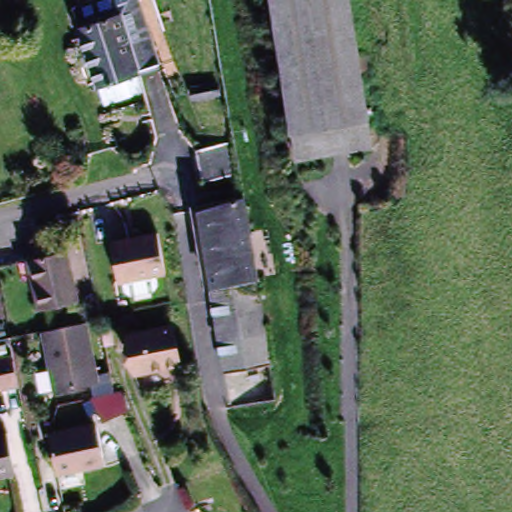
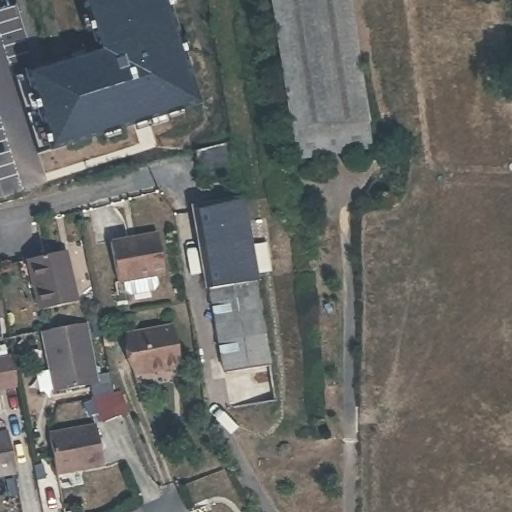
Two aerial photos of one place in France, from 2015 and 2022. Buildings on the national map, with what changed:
new [(83,0),(168,0),(198,102),(37,151),(13,75),(99,50),(83,0)]
demolished [(92,76),(70,0),(136,0),(153,58),(92,76)]
unchanged [(295,162),(276,0),(353,0),(371,154),(295,162)]
unchanged [(240,138),(245,170),(206,180),(203,166),(199,149),(240,138)]
unchanged [(247,204),(276,366),(229,374),(202,213),(247,204)]
unchanged [(157,235),(166,275),(121,286),(111,246),(157,235)]
unchanged [(63,254),(75,306),(37,315),(25,262),(63,254)]
unchanged [(96,324),(97,328),(106,326),(110,342),(101,345),(99,339),(92,340),(89,325),(96,324)]
unchanged [(173,326),(183,367),(136,378),(127,338),(173,326)]
unchanged [(81,327),(96,385),(54,395),(39,336),(81,327)]
unchanged [(20,387),(0,392),(0,359),(12,356),(20,387)]
unchanged [(129,420),(99,427),(91,408),(99,406),(113,402),(121,401),(129,420)]
unchanged [(48,432),(91,425),(104,472),(56,485),(45,436),(48,432)]
unchanged [(16,471),(0,475),(0,433),(6,431),(16,471)]

